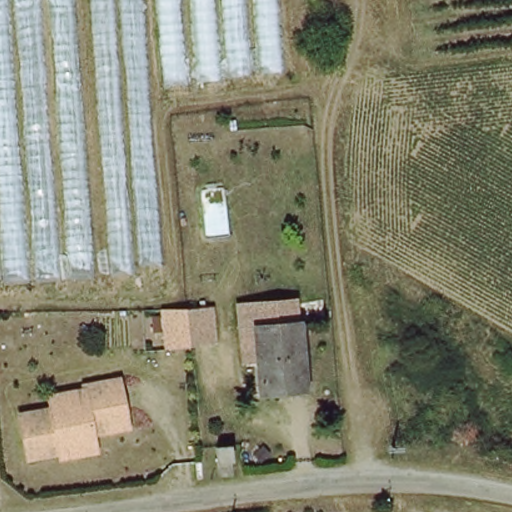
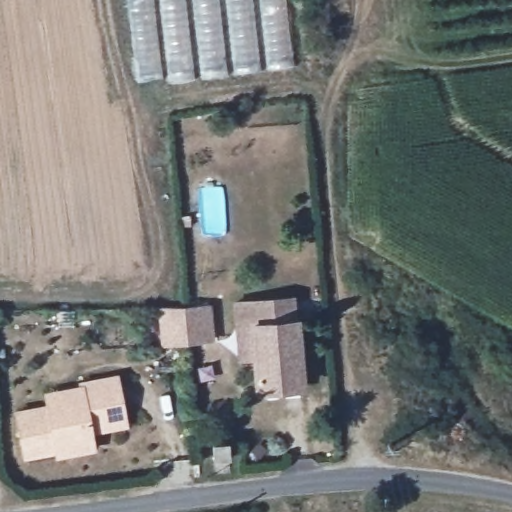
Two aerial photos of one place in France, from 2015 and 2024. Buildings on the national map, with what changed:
new [(147,87),(159,264),(0,276),(0,0),(284,0),(296,89),(147,87)]
demolished [(0,277),(0,73),(14,276),(0,277)]
new [(256,325),(235,327),(234,301),(300,296),(302,321),(256,325)]
new [(207,310),(210,345),(185,347),(160,350),(157,315),(182,312),(207,310)]
unchanged [(308,387),(264,391),(256,325),(302,321),(308,387)]
unchanged [(57,459),(57,454),(24,459),(15,415),(48,408),(45,396),(80,390),(80,387),(116,380),(125,428),(90,436),(91,445),(93,452),(57,459)]

